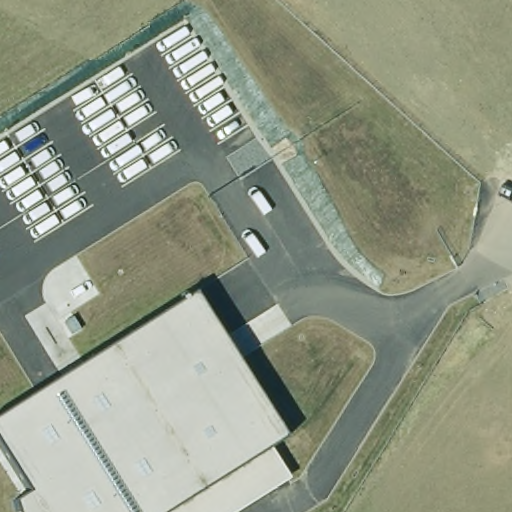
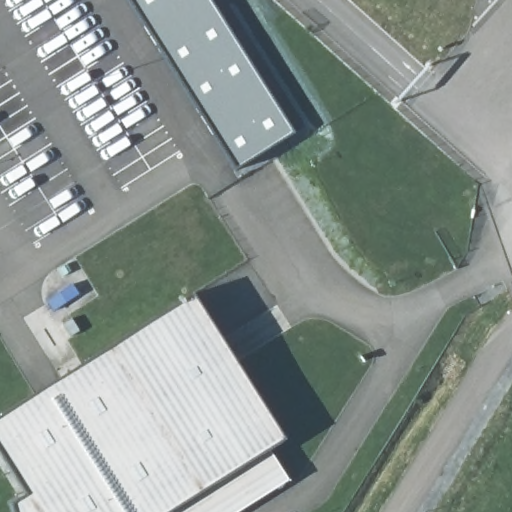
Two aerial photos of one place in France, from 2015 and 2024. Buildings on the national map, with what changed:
new [(234,165),(131,0),(210,0),(294,133),(234,165)]
unchanged [(286,440),(269,450),(172,512),(13,512),(10,504),(25,494),(0,455),(0,416),(193,294),(286,440)]
new [(71,319),(79,331),(70,337),(63,324),(71,319)]
new [(269,450),(286,478),(288,480),(283,484),(238,512),(172,512),(269,450)]

